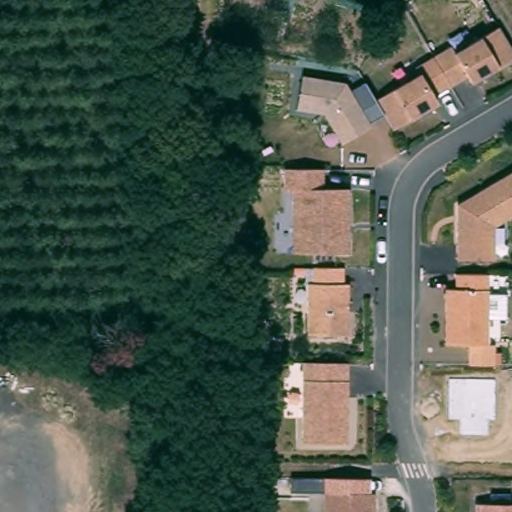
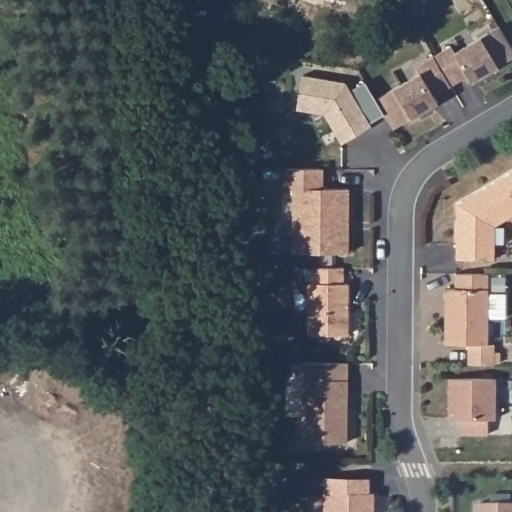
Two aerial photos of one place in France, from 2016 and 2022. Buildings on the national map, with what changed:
unchanged [(512,61),(472,82),(469,77),(436,95),(441,105),(392,130),(376,102),(420,77),(415,67),(447,48),(452,55),(500,28),(512,53),(512,61)]
unchanged [(368,122),(371,127),(341,144),(323,114),(297,110),(301,75),(343,82),(349,90),(363,81),(376,102),(382,114),(368,122)]
unchanged [(322,170),(321,190),(349,190),(347,255),(293,254),(291,189),(286,190),(286,170),(322,170)]
unchanged [(492,259),(456,259),(457,205),(512,173),(512,218),(493,228),(492,259)]
unchanged [(346,270),(346,286),(351,286),(350,336),(309,336),(310,286),(313,286),(313,270),(346,270)]
unchanged [(490,276),(487,343),(443,342),(445,290),(456,290),(456,276),(490,276)]
unchanged [(351,365),(348,445),(302,444),(303,365),(351,365)]
new [(450,379),(496,380),(495,420),(488,419),(488,435),(461,434),(461,419),(450,419),(450,379)]
unchanged [(374,512),(325,512),(325,495),(375,493),(374,512)]
unchanged [(512,512),(477,512),(477,503),(512,503),(512,512)]

